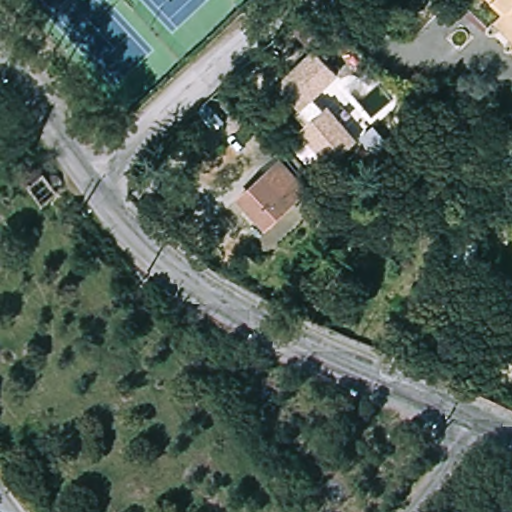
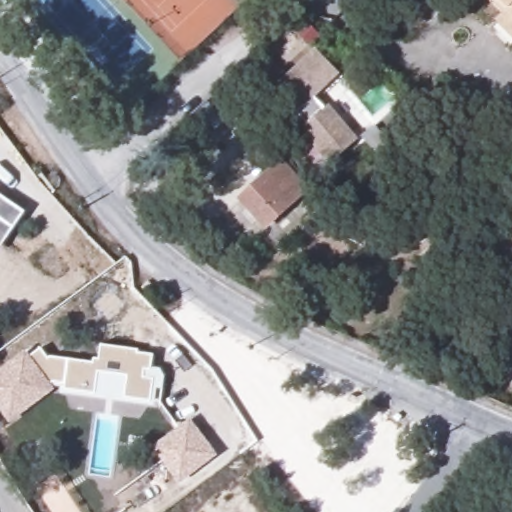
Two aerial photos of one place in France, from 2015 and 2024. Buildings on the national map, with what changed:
unchanged [(499,18),(507,10),(497,0),(512,0),(512,31),(499,18)]
unchanged [(340,76),(320,94),(323,98),(335,87),(361,116),(350,127),(357,134),(310,177),(288,147),(305,133),(299,126),(305,120),(296,109),(301,105),(277,79),(313,47),(340,76)]
unchanged [(306,192),(262,228),(235,197),(278,161),(306,192)]
demolished [(512,163),(512,195),(498,195),(497,169),(512,163)]
unchanged [(50,173),(60,191),(42,203),(29,188),(50,173)]
new [(0,249),(0,194),(25,211),(0,249)]
new [(40,347),(48,357),(50,356),(93,362),(94,358),(99,358),(102,344),(138,349),(138,352),(155,354),(152,367),(160,368),(165,377),(163,388),(158,388),(155,406),(60,393),(60,387),(55,387),(56,389),(10,423),(0,410),(0,369),(25,349),(30,355),(40,347)]
new [(191,418),(218,455),(179,483),(153,446),(191,418)]

